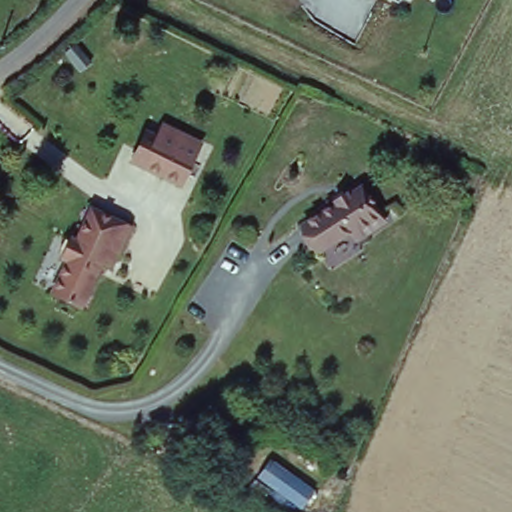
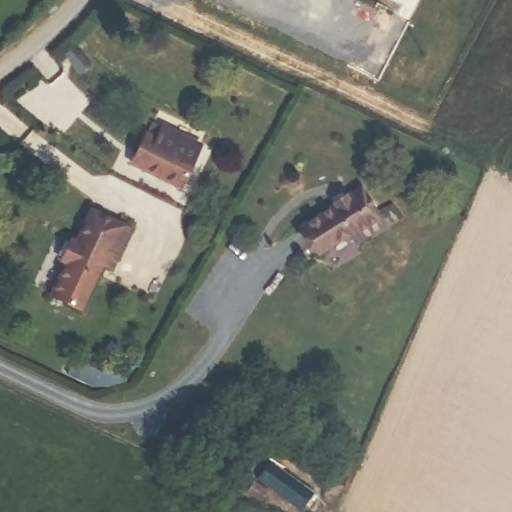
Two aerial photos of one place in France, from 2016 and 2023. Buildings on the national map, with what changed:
unchanged [(203,141),(178,186),(125,165),(145,128),(155,133),(162,125),(203,141)]
unchanged [(291,222),(301,214),(305,219),(359,181),(382,215),(353,237),(347,228),(316,247),(312,237),(306,242),(291,222)]
unchanged [(106,257),(88,301),(56,290),(67,255),(61,252),(68,230),(75,234),(86,205),(129,220),(116,255),(113,261),(106,257)]
unchanged [(318,492),(303,512),(255,477),(271,457),(318,492)]

